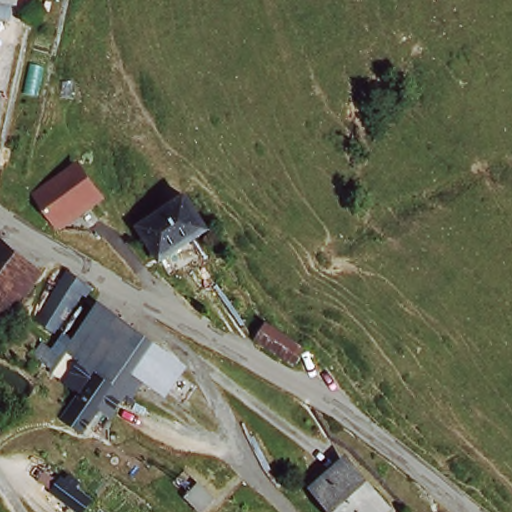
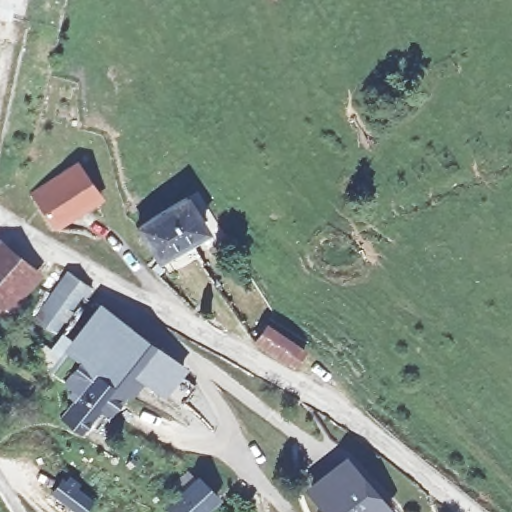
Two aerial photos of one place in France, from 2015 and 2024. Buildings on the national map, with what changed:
unchanged [(8,0),(5,11),(0,10),(0,0),(8,0)]
unchanged [(57,225),(47,210),(35,194),(40,191),(56,179),(77,164),(99,196),(79,211),(71,216),(57,225)]
unchanged [(163,257),(145,230),(191,198),(210,227),(163,257)]
unchanged [(17,298),(0,318),(0,246),(28,267),(37,274),(17,298)]
unchanged [(75,316),(70,314),(54,335),(34,320),(68,274),(90,291),(85,299),(83,298),(78,303),(80,306),(75,316)]
unchanged [(130,329),(182,369),(177,376),(194,389),(181,405),(165,394),(165,393),(157,402),(147,415),(121,395),(95,375),(65,352),(98,306),(130,329)]
unchanged [(269,325),(307,349),(297,365),(259,341),(266,329),(269,325)]
unchanged [(104,415),(48,374),(65,352),(95,375),(121,395),(104,415)]
unchanged [(370,493),(377,489),(386,505),(377,512),(335,512),(315,487),(349,464),(370,493)]
new [(222,498),(208,512),(169,512),(165,508),(197,473),(222,498)]
unchanged [(84,510),(60,490),(70,476),(93,496),(84,510)]

